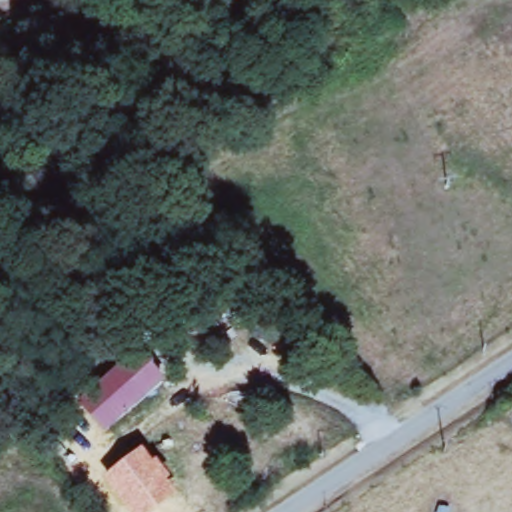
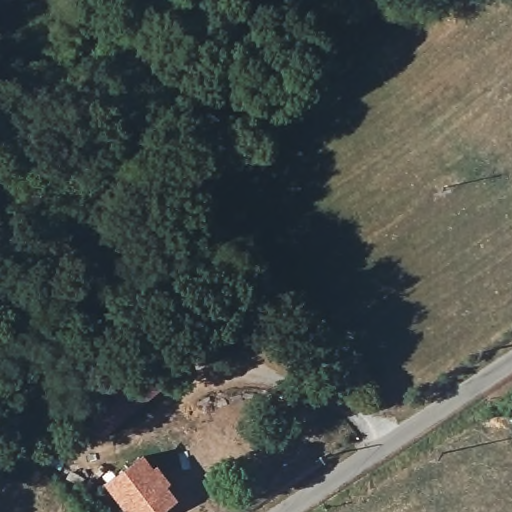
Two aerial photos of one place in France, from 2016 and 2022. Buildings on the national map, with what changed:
unchanged [(76,402),(140,352),(165,384),(102,437),(76,402)]
unchanged [(155,463),(169,482),(165,485),(175,500),(157,512),(124,512),(101,480),(140,451),(151,465),(155,463)]

